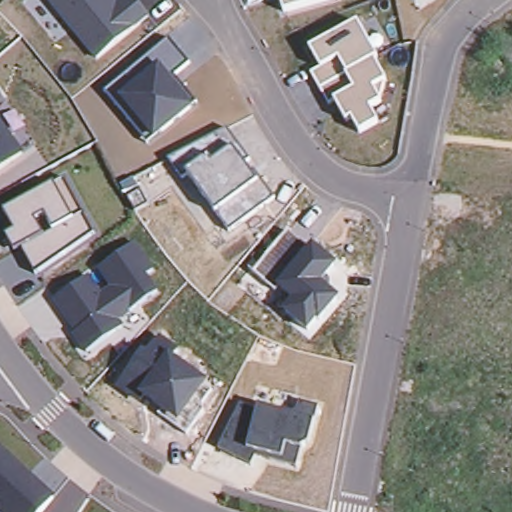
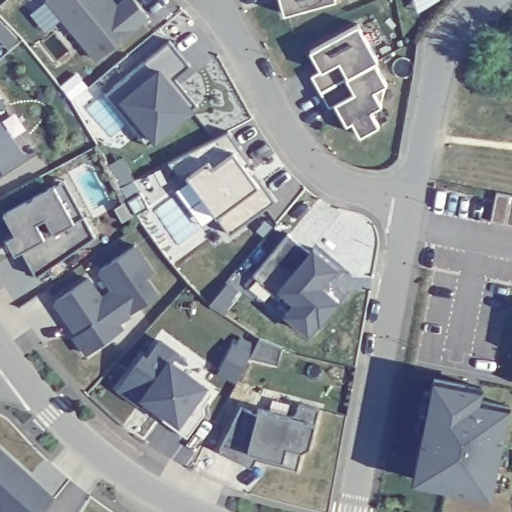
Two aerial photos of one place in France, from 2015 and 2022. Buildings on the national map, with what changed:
unchanged [(120,0),(137,0),(150,16),(98,58),(48,0),(117,0),(118,1),(120,0)]
unchanged [(280,0),(336,0),(284,14),(280,0)]
unchanged [(358,24),(377,58),(373,61),(387,82),(374,90),(381,105),(371,111),(379,125),(359,136),(351,121),(346,123),(335,104),(328,106),(312,76),(321,70),(312,51),(358,24)]
unchanged [(190,63),(174,77),(197,103),(149,144),(107,94),(170,41),(190,63)]
unchanged [(6,101),(0,106),(0,94),(6,101)]
unchanged [(25,152),(0,170),(0,119),(25,152)]
unchanged [(229,130),(274,200),(230,231),(217,214),(188,176),(182,181),(171,161),(229,130)]
unchanged [(96,232),(37,272),(24,249),(16,252),(10,238),(15,234),(5,213),(54,187),(66,180),(96,232)]
new [(499,192),(512,195),(512,225),(493,221),(499,192)]
unchanged [(289,233),(312,249),(314,246),(339,265),(324,285),(341,298),(322,323),(318,321),(310,332),(284,314),(294,301),(279,289),(256,273),(289,233)]
unchanged [(72,334),(76,332),(55,302),(91,277),(103,295),(112,289),(100,271),(139,245),(157,271),(149,277),(161,294),(122,322),(126,328),(87,354),(72,334)]
unchanged [(143,354),(147,358),(161,338),(181,351),(176,360),(208,382),(181,424),(142,398),(121,388),(143,354)]
new [(493,495),(412,478),(433,374),(484,384),(480,397),(509,403),(493,495)]
unchanged [(240,404),(259,407),(295,417),(299,401),(319,404),(314,423),(310,446),(302,451),(297,469),(256,458),(251,468),(219,450),(240,404)]
unchanged [(42,512),(3,512),(0,509),(0,442),(57,495),(42,512)]

